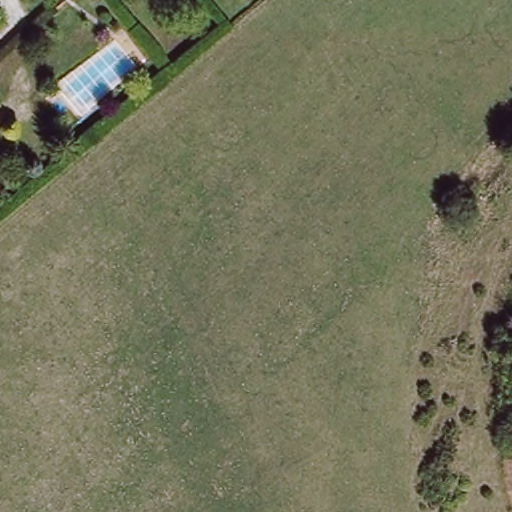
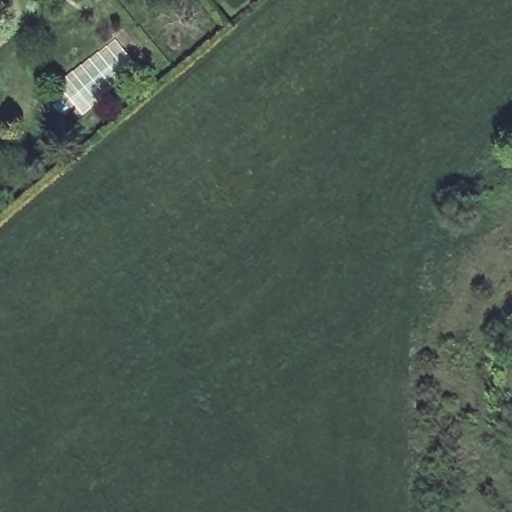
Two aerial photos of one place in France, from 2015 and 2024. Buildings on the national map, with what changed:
unchanged [(115,38),(136,62),(81,112),(58,80),(115,38)]

